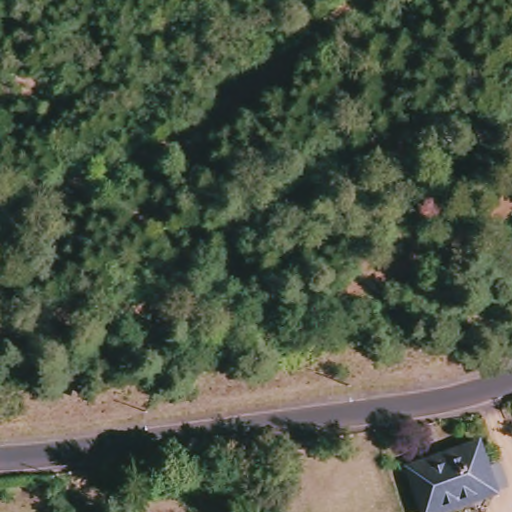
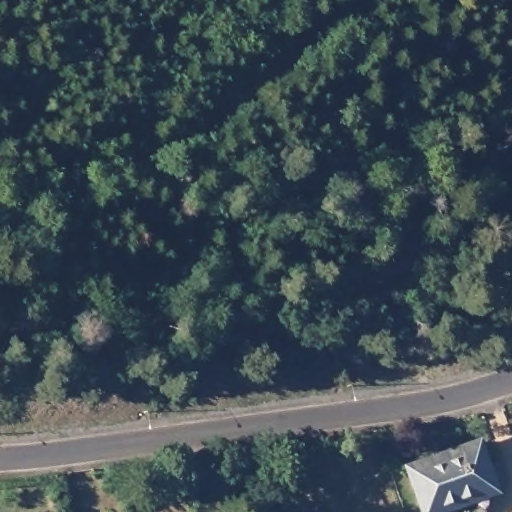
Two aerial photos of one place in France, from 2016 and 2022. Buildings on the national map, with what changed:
unchanged [(451,512),(432,512),(417,469),(487,443),(506,494),(451,512)]

